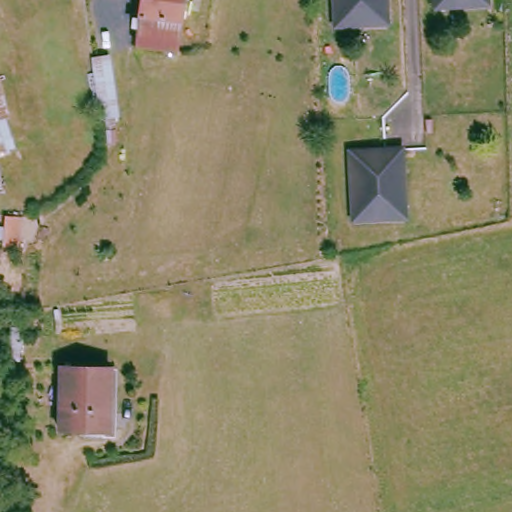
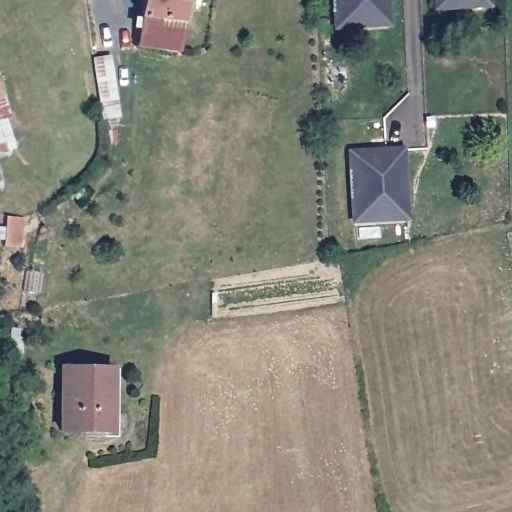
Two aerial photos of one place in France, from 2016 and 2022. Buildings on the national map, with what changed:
unchanged [(137,22),(136,11),(137,0),(173,0),(172,19),(169,19),(166,53),(134,49),(137,22)]
unchanged [(332,14),(331,0),(383,0),(384,19),(353,21),(333,22),(332,14)]
unchanged [(434,0),(485,0),(486,1),(455,5),(435,7),(434,0)]
unchanged [(118,117),(91,120),(84,69),(89,68),(89,57),(108,54),(118,117)]
unchanged [(5,114),(1,116),(10,147),(0,150),(0,97),(5,114)]
unchanged [(348,209),(345,149),(367,147),(367,155),(375,154),(374,147),(396,146),(399,214),(369,216),(348,217),(348,209)]
unchanged [(18,251),(0,251),(0,214),(22,215),(18,251)]
unchanged [(98,367),(98,430),(60,430),(59,367),(98,367)]

